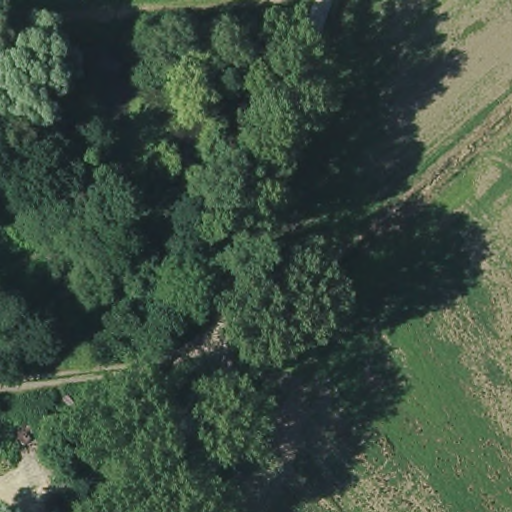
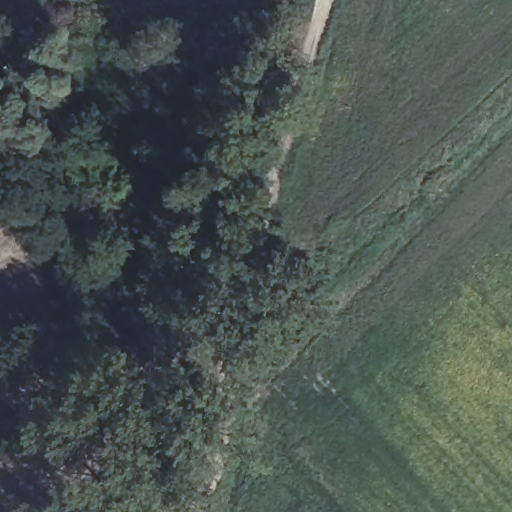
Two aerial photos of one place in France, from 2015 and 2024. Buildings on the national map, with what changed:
unchanged [(11,372),(0,353),(0,345),(21,331),(34,355),(11,372)]

